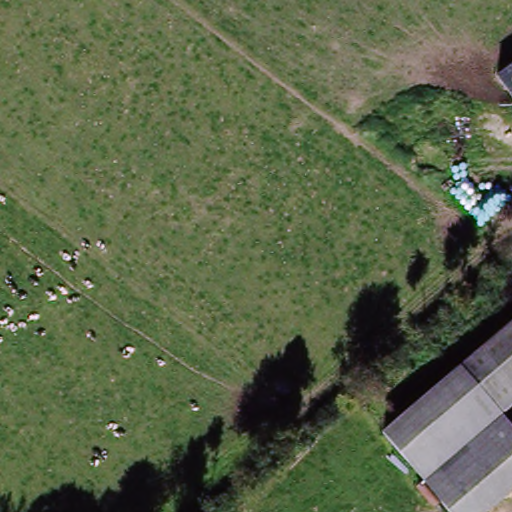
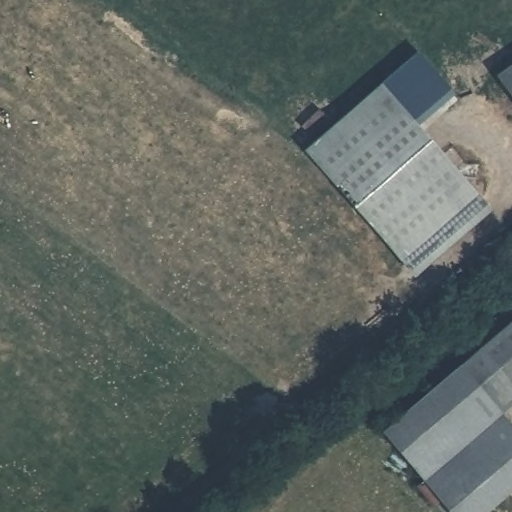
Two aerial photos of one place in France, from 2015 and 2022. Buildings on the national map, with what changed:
new [(455,96),(420,127),(493,209),(413,278),(303,152),(419,53),(455,96)]
unchanged [(495,78),(512,66),(512,100),(495,78)]
unchanged [(458,370),(512,325),(512,389),(490,408),(458,370)]
unchanged [(512,435),(512,486),(491,504),(482,512),(447,512),(382,433),(458,370),(490,408),(512,435)]

